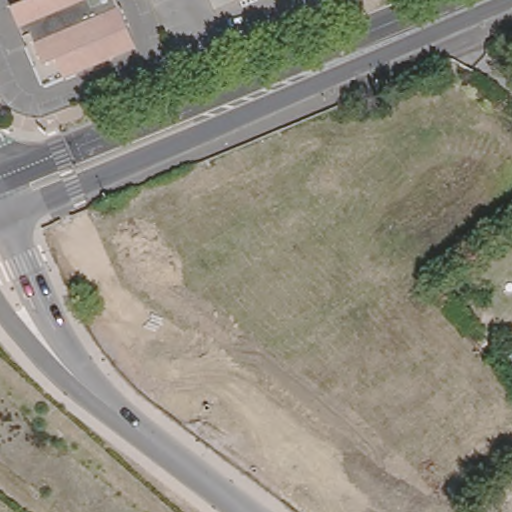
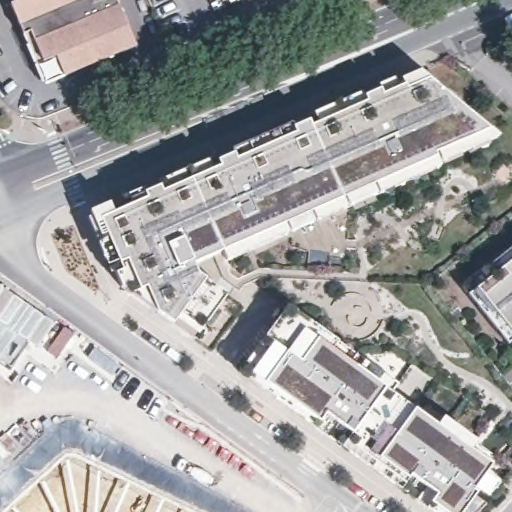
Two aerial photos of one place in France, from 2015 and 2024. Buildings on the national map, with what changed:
unchanged [(17,0),(122,0),(134,28),(128,43),(66,70),(50,77),(17,0)]
unchanged [(512,41),(512,45),(501,50),(495,38),(507,33),(512,41)]
new [(198,275),(226,296),(193,344),(121,289),(89,213),(421,71),(500,139),(198,275)]
new [(462,287),(512,247),(512,340),(508,343),(462,287)]
new [(336,352),(359,367),(365,360),(399,383),(393,392),(413,408),(418,398),(479,441),(471,451),(492,467),(486,474),(500,483),(486,497),(495,504),(489,512),(434,512),(319,430),(232,369),(285,302),(343,342),(336,352)]

